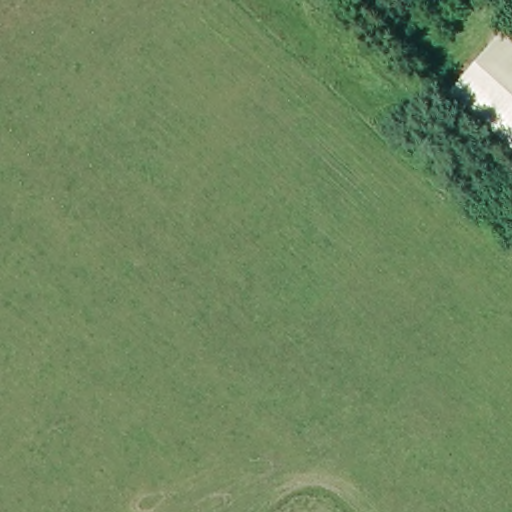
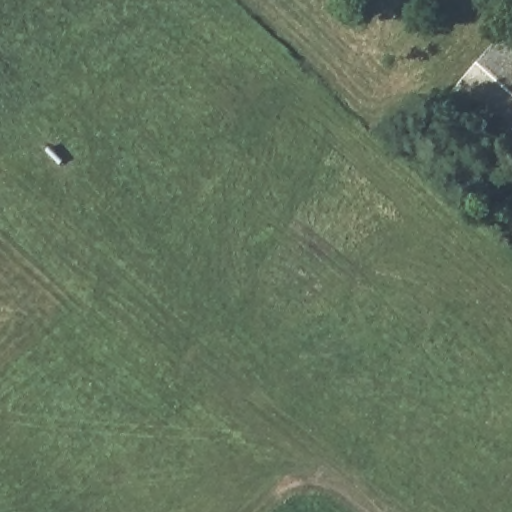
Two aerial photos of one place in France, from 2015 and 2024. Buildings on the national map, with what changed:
unchanged [(449,97),(497,36),(512,48),(512,147),(449,97)]

